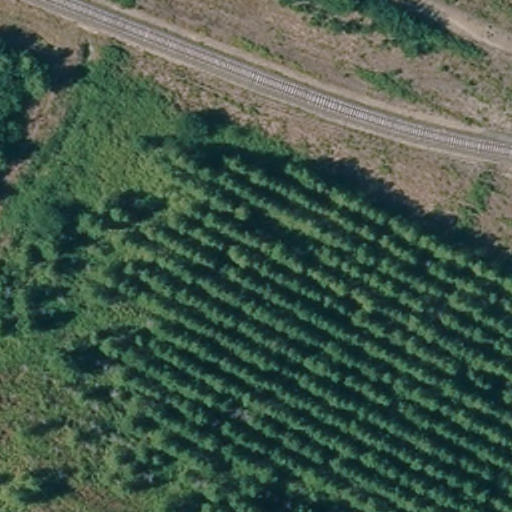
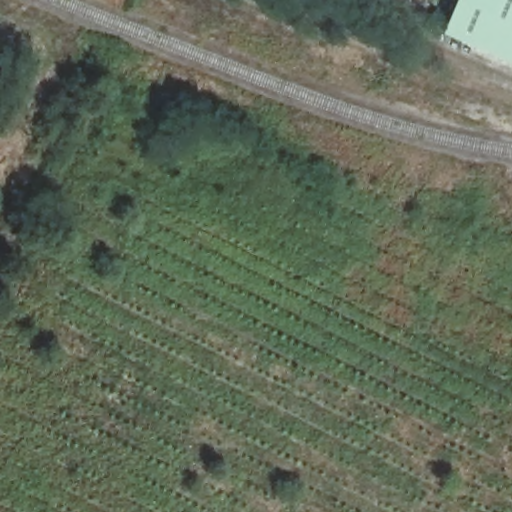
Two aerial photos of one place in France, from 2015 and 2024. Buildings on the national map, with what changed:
new [(454,0),(512,0),(512,58),(441,29),(443,24),(454,0)]

